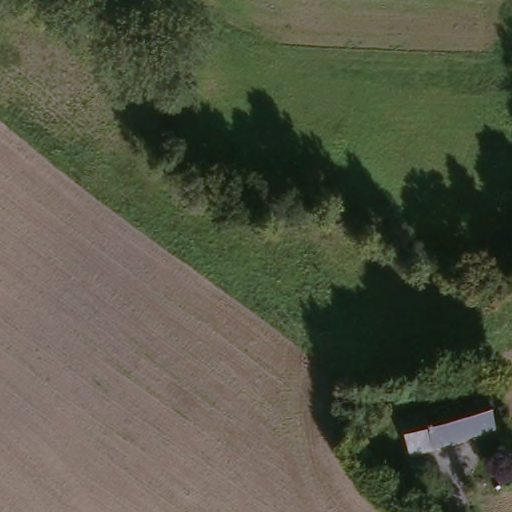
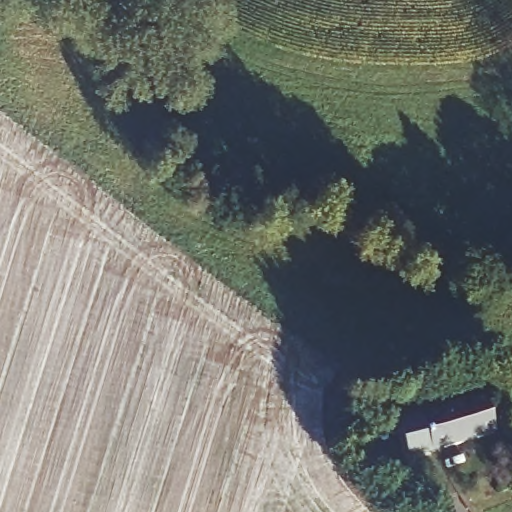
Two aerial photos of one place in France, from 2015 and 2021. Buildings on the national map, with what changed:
unchanged [(490,390),(499,428),(414,451),(402,411),(490,390)]

